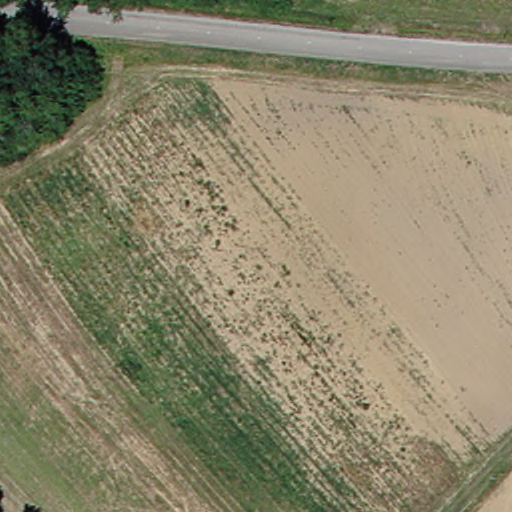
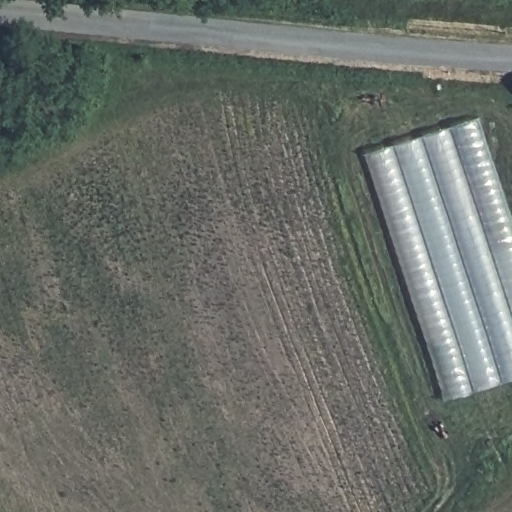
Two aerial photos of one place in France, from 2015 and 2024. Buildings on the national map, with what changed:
new [(445,401),(366,154),(479,118),(512,224),(512,380),(445,401)]

